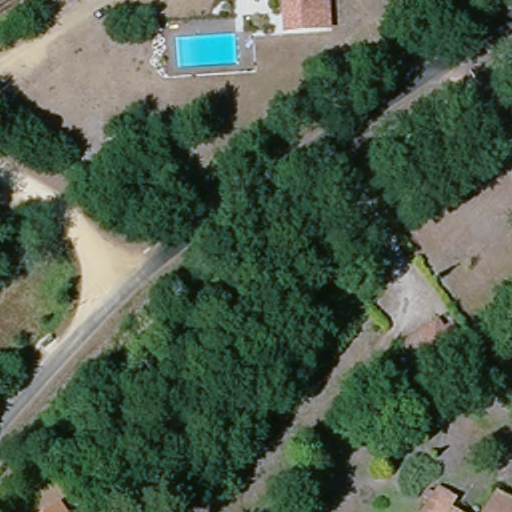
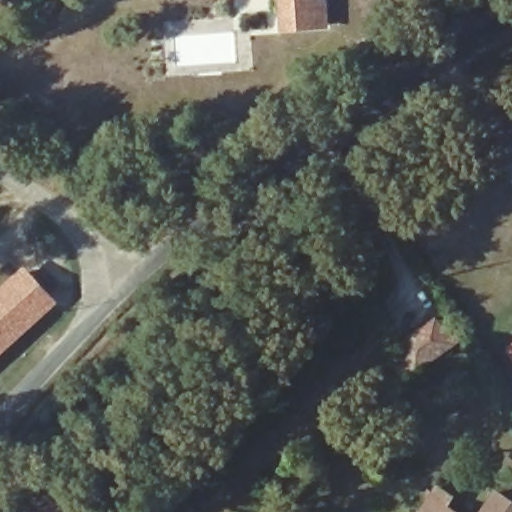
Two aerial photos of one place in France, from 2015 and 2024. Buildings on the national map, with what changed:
unchanged [(317,1),(324,0),(330,0),(331,23),(291,27),(289,0),(317,0),(317,1)]
new [(52,306),(0,354),(0,295),(24,274),(52,306)]
unchanged [(401,363),(397,358),(407,352),(402,343),(419,332),(438,318),(441,322),(445,327),(453,322),(465,341),(456,347),(437,359),(420,370),(410,377),(401,363)]
unchanged [(435,502),(429,496),(433,489),(440,493),(445,488),(460,498),(453,507),(462,512),(431,512),(430,511),(435,502)]
unchanged [(512,502),(512,512),(492,512),(503,496),(512,502)]
unchanged [(49,512),(60,504),(66,512),(49,512)]

